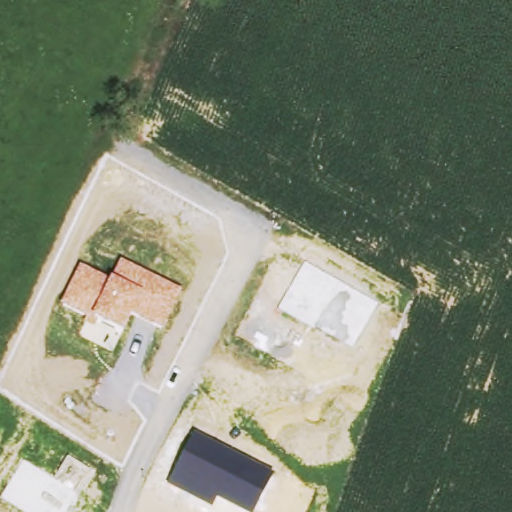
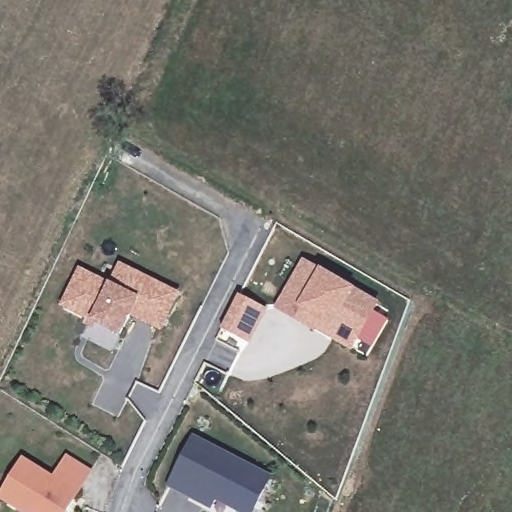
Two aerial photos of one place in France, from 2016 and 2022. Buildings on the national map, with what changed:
new [(380,303),(353,352),(277,307),(304,259),(380,303)]
unchanged [(181,295),(161,333),(130,321),(122,338),(90,323),(58,309),(79,268),(109,282),(119,263),(181,295)]
unchanged [(272,478),(255,512),(235,512),(215,502),(211,510),(166,488),(192,438),(272,478)]
new [(70,512),(20,512),(0,500),(0,496),(22,457),(54,477),(67,455),(95,473),(70,512)]

